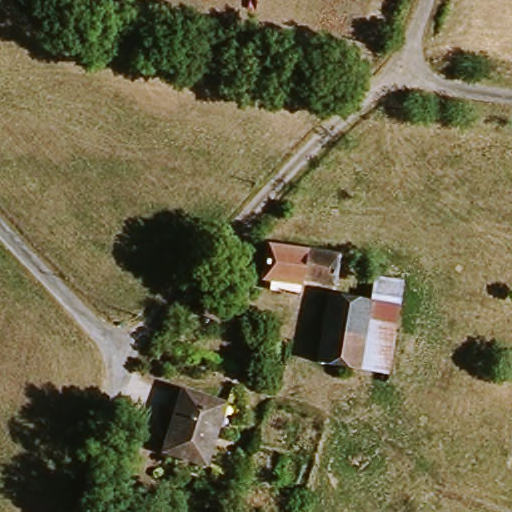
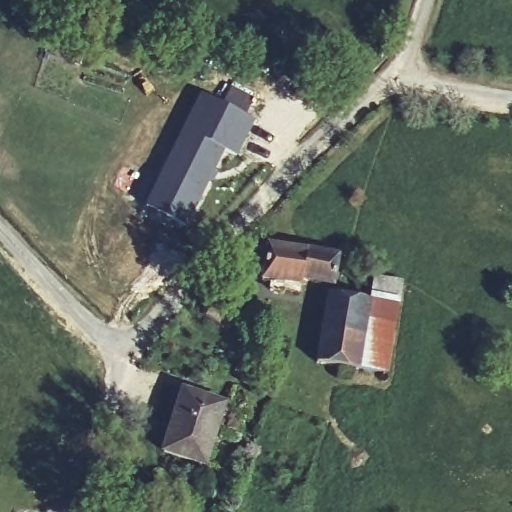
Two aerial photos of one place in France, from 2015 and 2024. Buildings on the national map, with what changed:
new [(200,90),(221,101),(229,86),(253,97),(246,113),(256,118),(238,156),(226,151),(187,228),(144,205),(200,90)]
unchanged [(257,276),(266,243),(355,265),(351,286),(298,274),(294,286),(257,276)]
unchanged [(322,366),(331,296),(370,300),(370,296),(373,296),(377,280),(405,282),(391,377),(322,366)]
unchanged [(162,452),(185,388),(229,401),(206,468),(162,452)]

